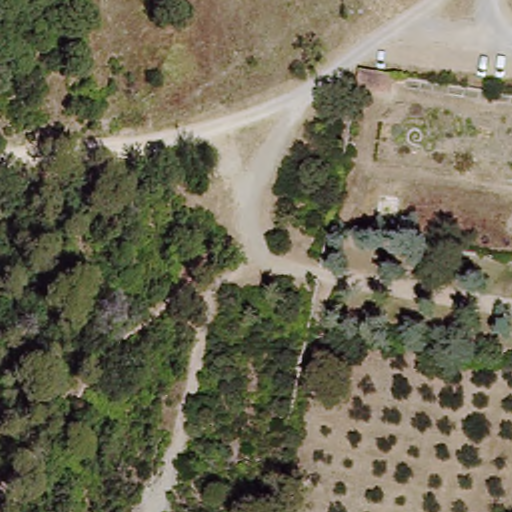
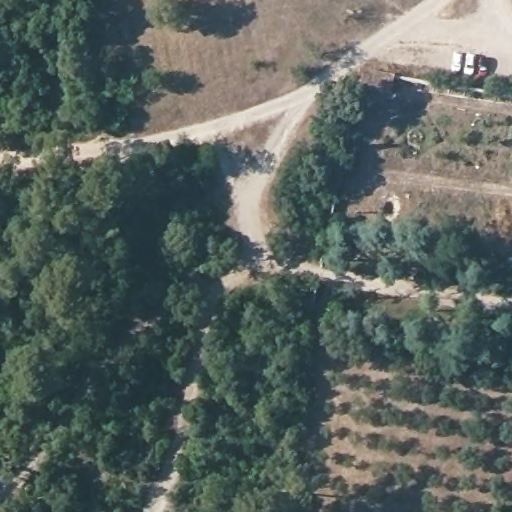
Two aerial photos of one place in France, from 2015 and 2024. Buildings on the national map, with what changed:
unchanged [(379,75),(375,91),(362,90),(365,73),(379,75)]

